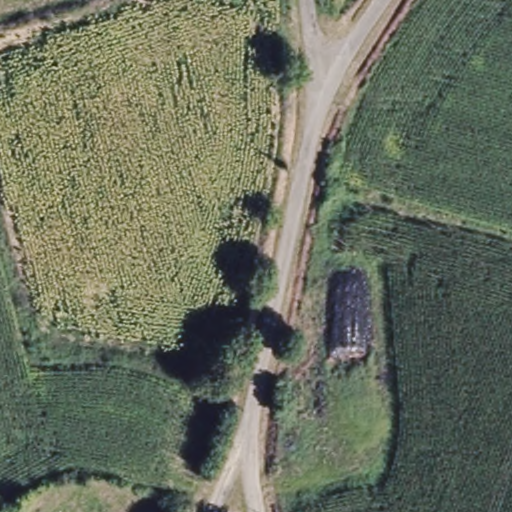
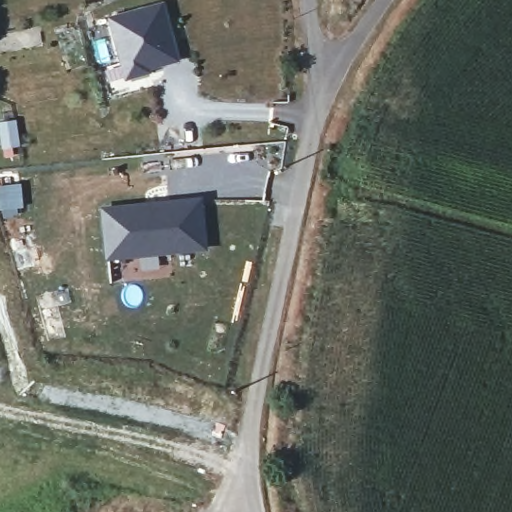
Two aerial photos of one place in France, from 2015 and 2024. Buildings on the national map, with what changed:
new [(148,74),(125,80),(120,62),(108,19),(162,5),(177,61),(160,66),(147,70),(148,74)]
new [(208,251),(106,260),(101,207),(203,197),(208,251)]

